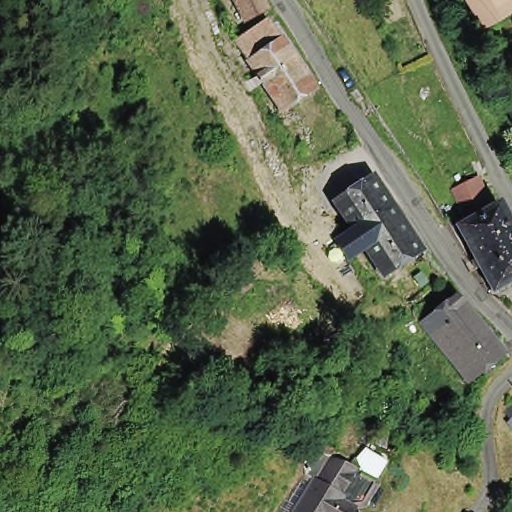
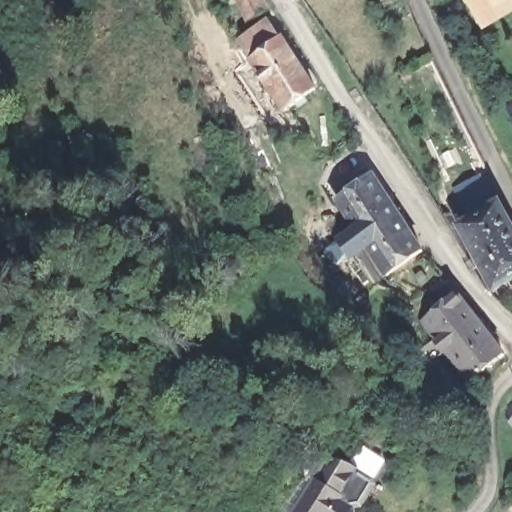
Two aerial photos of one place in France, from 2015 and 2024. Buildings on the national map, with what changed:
unchanged [(269,13),(251,22),(240,0),(262,0),(269,13)]
unchanged [(512,3),(512,7),(480,26),(464,0),(510,0),(512,3)]
unchanged [(270,24),(313,89),(278,111),(236,47),(270,24)]
unchanged [(507,110),(512,107),(512,129),(502,112),(507,110)]
unchanged [(358,163),(368,179),(345,193),(335,178),(358,163)]
unchanged [(472,181),(486,208),(461,220),(448,194),(472,181)]
unchanged [(423,260),(387,287),(362,248),(358,250),(351,239),(355,236),(335,208),(374,182),(392,211),(396,209),(410,229),(405,231),(423,260)]
unchanged [(512,283),(483,298),(449,231),(495,208),(512,243),(512,283)]
unchanged [(505,357),(467,384),(422,319),(459,293),(505,357)]
unchanged [(412,311),(428,334),(411,346),(395,323),(412,311)]
unchanged [(309,485),(323,462),(347,469),(383,493),(385,503),(380,512),(300,512),(315,489),(309,485)]

